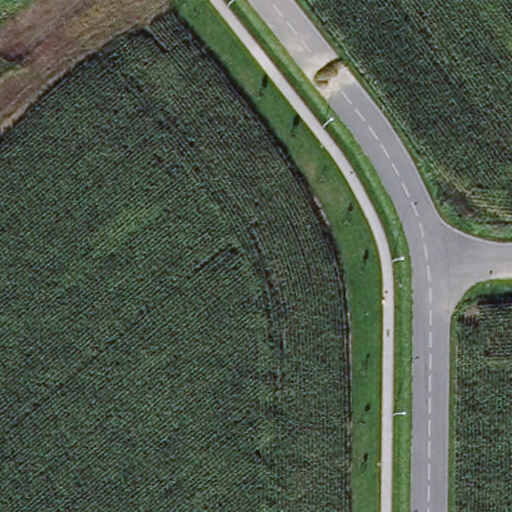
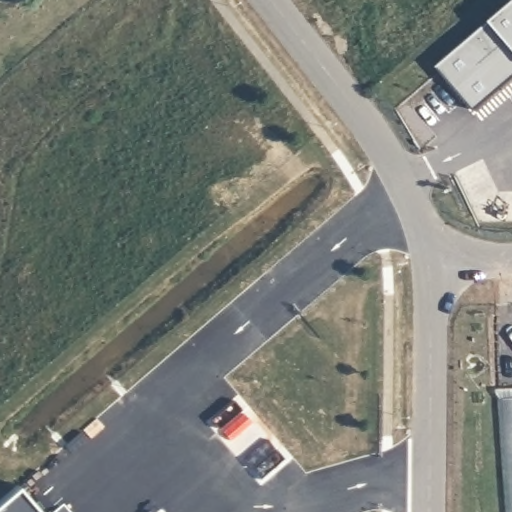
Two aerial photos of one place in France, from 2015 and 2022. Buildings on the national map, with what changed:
new [(512,6),(512,82),(477,112),(439,69),(512,6)]
new [(511,512),(503,400),(512,399),(512,512),(511,512)]
new [(27,512),(9,512),(19,503),(27,512)]

